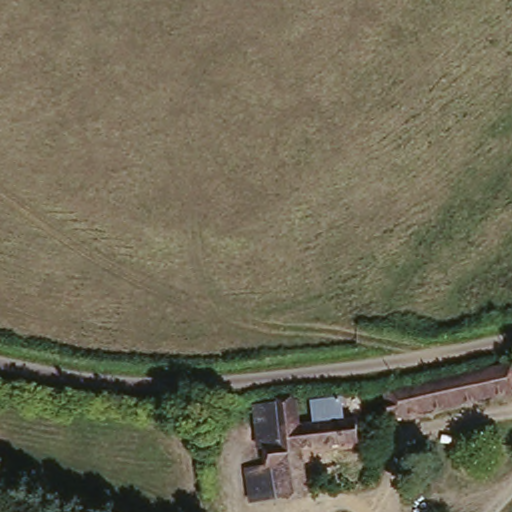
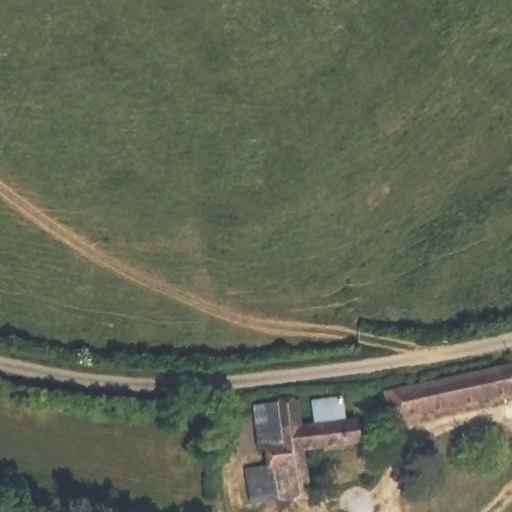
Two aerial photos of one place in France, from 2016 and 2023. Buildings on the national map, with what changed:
unchanged [(389,390),(512,370),(512,398),(446,410),(395,420),(389,390)]
unchanged [(281,464),(269,465),(267,441),(264,441),(262,407),(303,401),(307,420),(317,422),(317,405),(346,401),(350,421),(359,420),(363,445),(307,450),(312,495),(283,498),(281,464)]
unchanged [(245,466),(269,465),(281,464),(283,498),(248,502),(245,466)]

